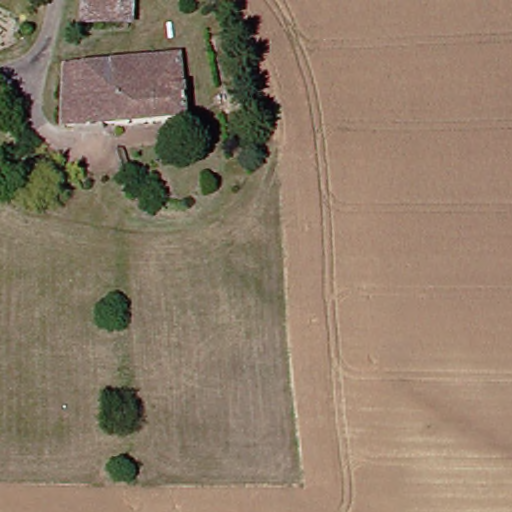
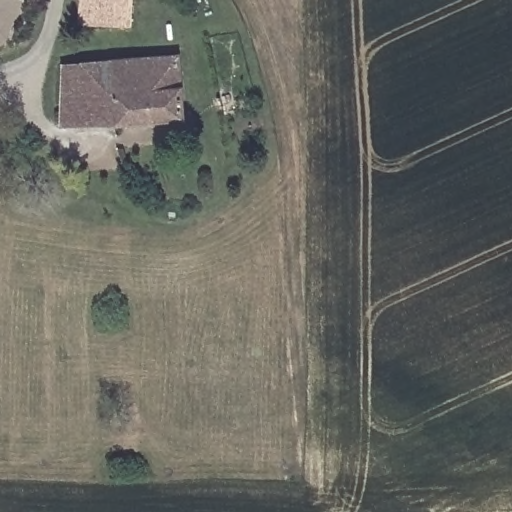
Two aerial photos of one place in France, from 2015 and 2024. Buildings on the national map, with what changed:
unchanged [(77,0),(138,0),(136,26),(84,23),(85,6),(76,6),(77,0)]
unchanged [(67,66),(187,62),(189,121),(67,124),(67,66)]

